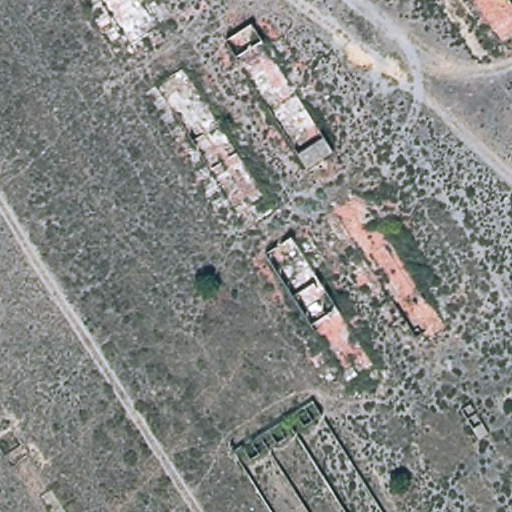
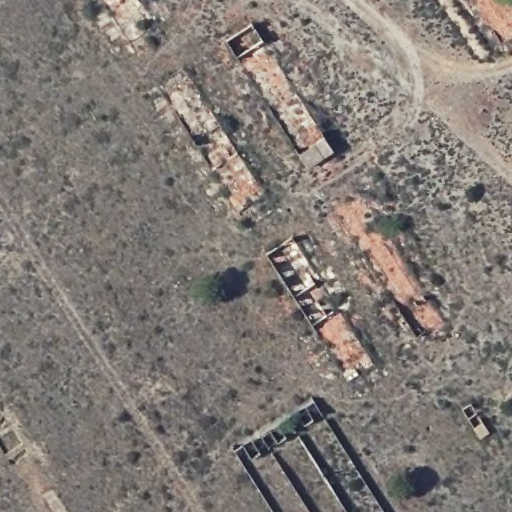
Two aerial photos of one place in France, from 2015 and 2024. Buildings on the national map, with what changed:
unchanged [(325,134),(335,153),(308,166),(298,149),(325,134)]

